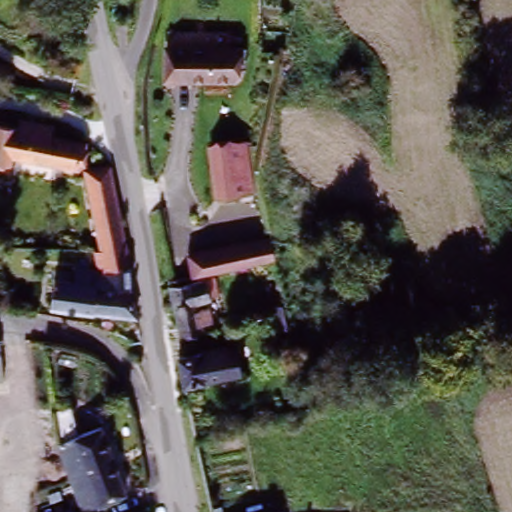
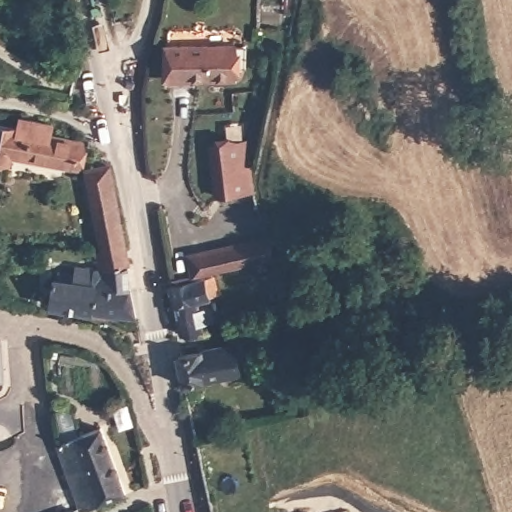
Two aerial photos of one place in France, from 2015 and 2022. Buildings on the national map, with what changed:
unchanged [(169,78),(170,48),(238,48),(237,78),(169,78)]
unchanged [(77,168),(15,157),(9,162),(0,161),(0,129),(16,132),(19,116),(52,123),(50,138),(82,144),(77,168)]
unchanged [(210,148),(230,145),(238,196),(217,199),(210,148)]
unchanged [(49,306),(51,282),(59,272),(72,273),(74,267),(92,268),(92,271),(105,269),(104,264),(97,264),(93,248),(100,248),(85,172),(110,168),(127,264),(127,288),(134,316),(49,306)]
unchanged [(187,258),(267,237),(268,243),(272,259),(205,275),(194,278),(187,258)]
unchanged [(197,302),(200,312),(210,309),(213,321),(204,324),(206,329),(182,336),(170,285),(194,278),(205,275),(212,298),(197,302)]
unchanged [(285,304),(285,329),(270,329),(269,309),(285,304)]
unchanged [(184,386),(180,355),(236,344),(242,375),(184,386)]
unchanged [(2,383),(0,383),(0,358),(2,383)]
unchanged [(64,462),(54,434),(70,428),(97,417),(120,481),(95,491),(99,503),(82,509),(73,512),(35,512),(34,510),(76,494),(64,462)]

